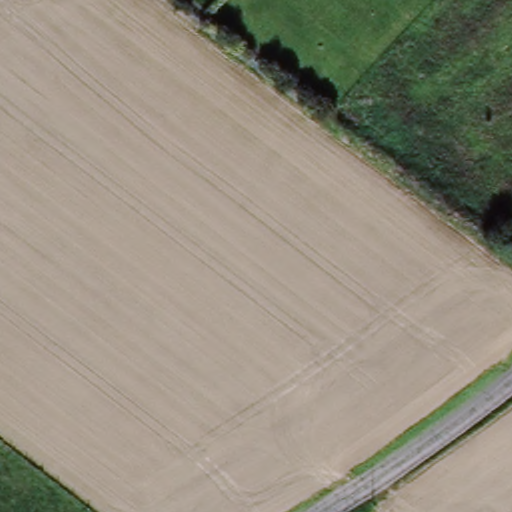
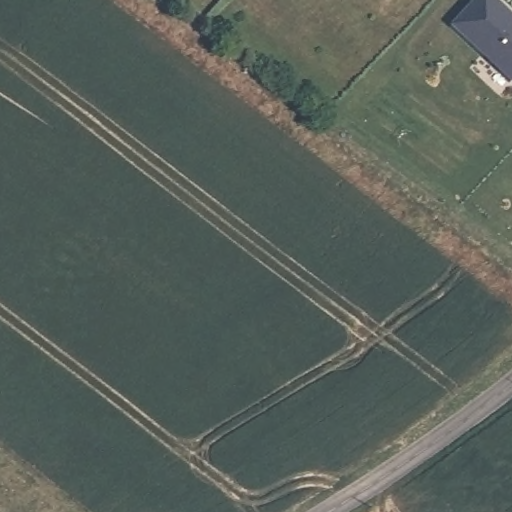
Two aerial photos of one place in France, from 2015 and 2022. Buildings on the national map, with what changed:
new [(512,81),(451,25),(476,0),(499,0),(512,12),(512,81)]

